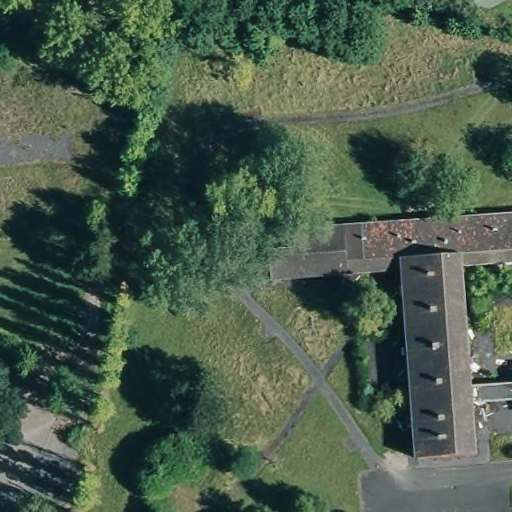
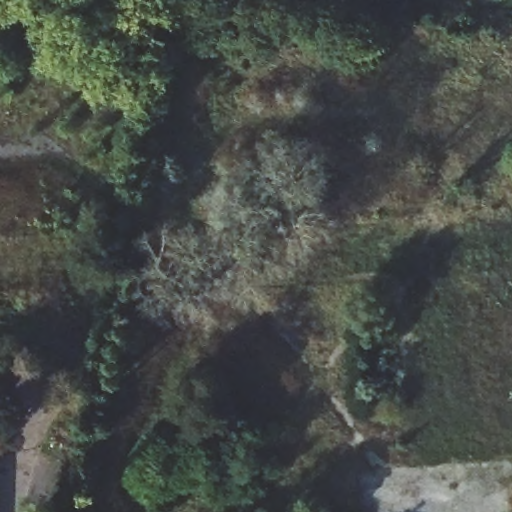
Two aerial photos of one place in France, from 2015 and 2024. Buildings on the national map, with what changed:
demolished [(454,251),(395,257),(396,267),(342,272),(338,224),(512,211),(512,260),(455,265),(454,251)]
demolished [(264,277),(259,230),(338,224),(342,272),(264,277)]
demolished [(469,452),(411,457),(396,267),(395,257),(454,251),(455,265),(465,392),(465,402),(469,452)]

